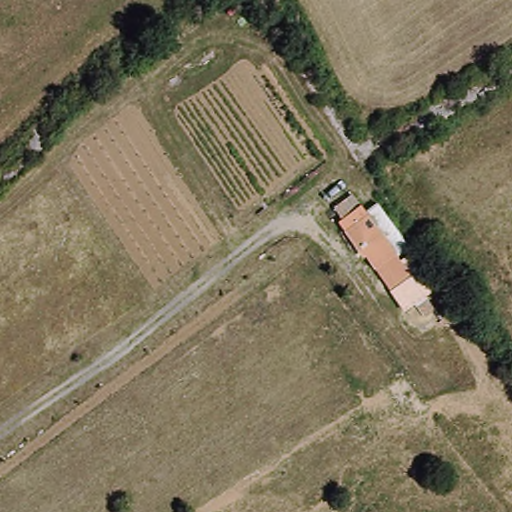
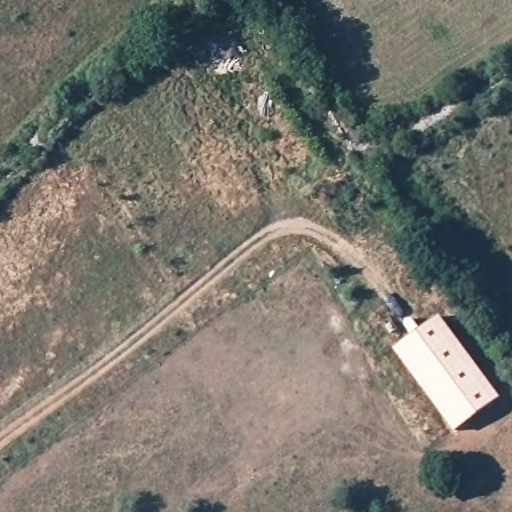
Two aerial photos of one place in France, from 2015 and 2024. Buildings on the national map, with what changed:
unchanged [(354,195),(363,204),(368,210),(379,202),(437,289),(405,310),(367,255),(364,257),(340,221),(343,218),(335,208),(354,195)]
new [(440,315),(500,397),(454,431),(394,349),(440,315)]

